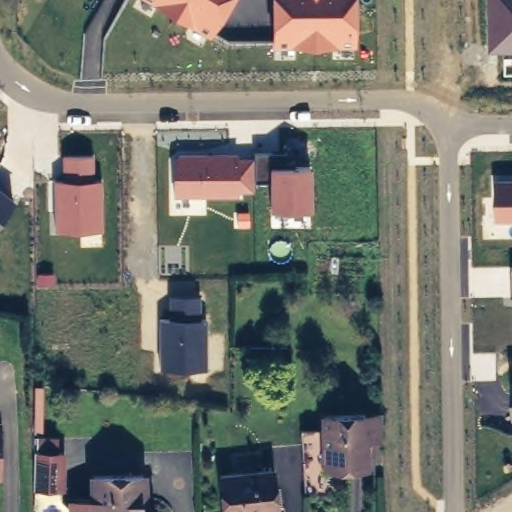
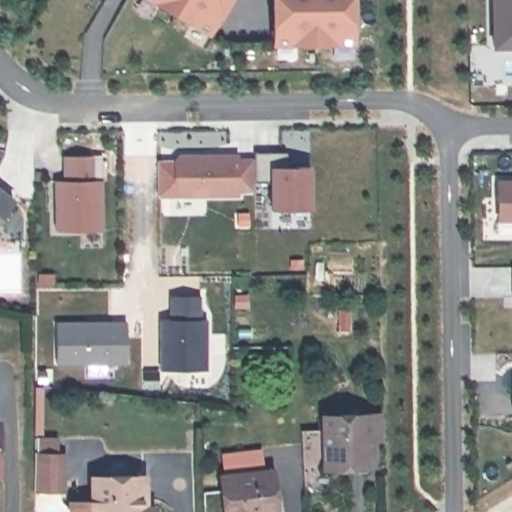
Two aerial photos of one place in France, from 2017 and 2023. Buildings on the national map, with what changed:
unchanged [(148,0),(231,0),(210,37),(148,0)]
unchanged [(272,46),(272,0),(356,0),(356,47),(272,46)]
unchanged [(490,50),(491,0),(512,0),(512,49),(490,50)]
unchanged [(173,155),(239,153),(239,158),(253,158),(253,153),(295,152),(296,167),(312,167),(312,210),(270,211),(270,182),(254,182),(254,192),(237,192),(237,198),(173,197),(173,155)]
unchanged [(55,181),(63,181),(62,156),(94,155),(95,180),(102,180),(102,231),(55,232),(55,181)]
new [(174,162),(174,197),(157,197),(157,162),(174,162)]
unchanged [(497,222),(497,181),(512,181),(512,222),(497,222)]
unchanged [(0,223),(0,188),(15,201),(0,223)]
unchanged [(160,320),(170,319),(169,296),(200,296),(200,318),(207,318),(208,371),(160,371),(160,320)]
new [(127,324),(127,364),(57,365),(57,325),(127,324)]
unchanged [(379,410),(380,439),(369,440),(370,469),(345,470),(345,478),(326,478),(327,471),(320,471),(319,412),(379,410)]
unchanged [(15,473),(0,473),(0,419),(15,420),(15,473)]
unchanged [(35,437),(58,437),(58,452),(66,452),(65,491),(35,492),(35,437)]
unchanged [(219,476),(272,471),(277,512),(223,512),(219,476)]
unchanged [(102,501),(94,500),(94,475),(147,477),(146,507),(153,511),(155,512),(102,512),(102,501)]
unchanged [(102,501),(102,512),(68,512),(69,500),(94,500),(102,501)]

